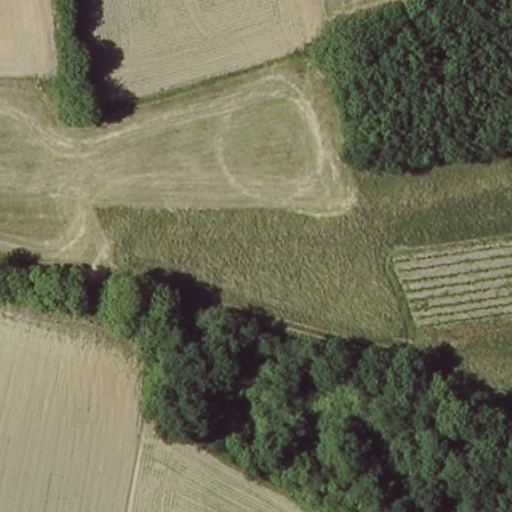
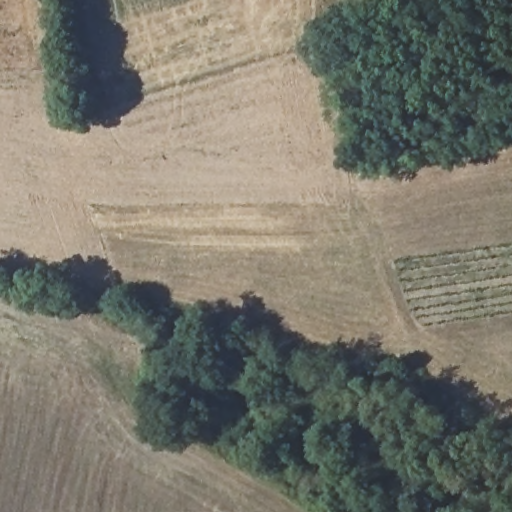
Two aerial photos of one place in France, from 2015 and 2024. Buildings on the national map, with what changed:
[]

